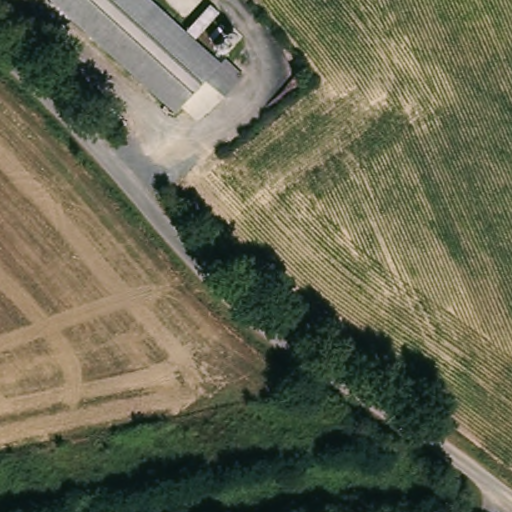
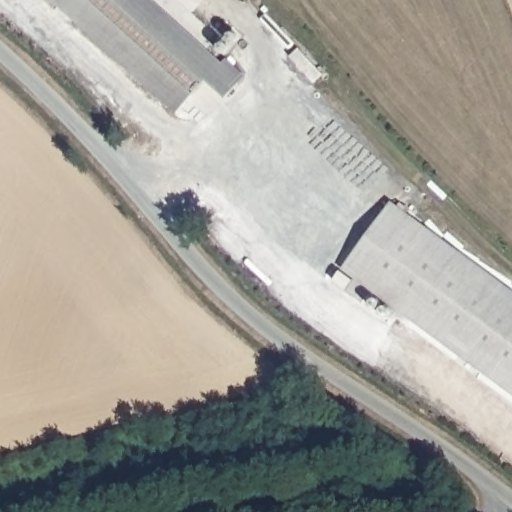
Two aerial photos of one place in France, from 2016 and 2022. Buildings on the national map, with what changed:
unchanged [(246,83),(232,96),(212,80),(180,114),(76,20),(54,0),(153,0),(160,6),(246,83)]
new [(512,290),(512,396),(340,270),(391,202),(512,290)]

